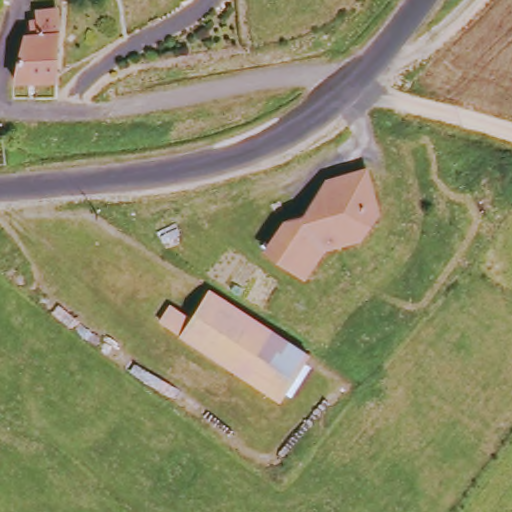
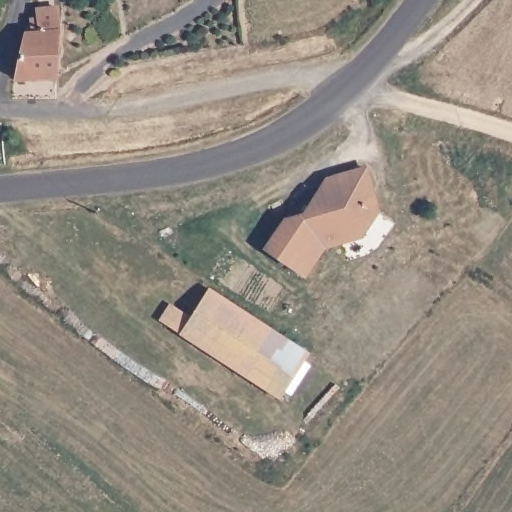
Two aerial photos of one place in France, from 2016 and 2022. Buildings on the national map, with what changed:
unchanged [(16,77),(14,74),(22,33),(37,32),(35,6),(55,3),(59,36),(57,71),(16,77)]
unchanged [(333,258),(314,284),(277,256),(299,228),(316,223),(342,191),(382,184),(391,229),(364,234),(333,258)]
unchanged [(308,354),(280,399),(162,322),(171,307),(190,319),(210,290),(308,354)]

